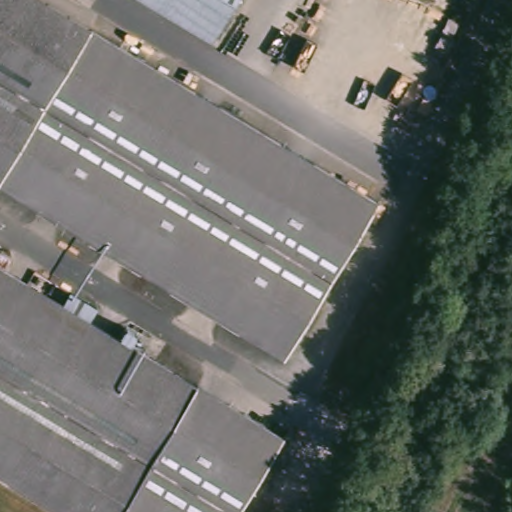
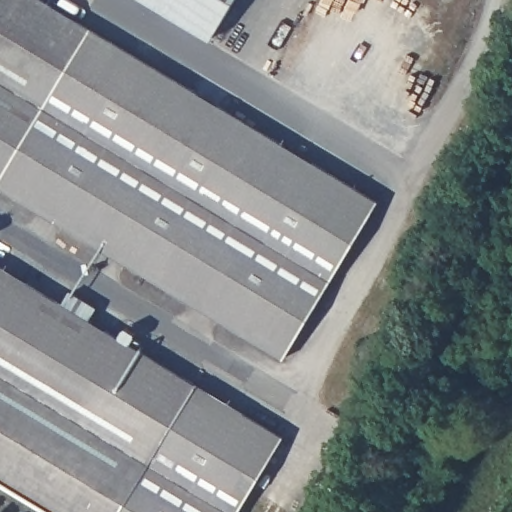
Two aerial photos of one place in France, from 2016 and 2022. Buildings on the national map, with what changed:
unchanged [(376,200),(280,359),(0,191),(0,0),(41,0),(376,200)]
unchanged [(210,40),(143,0),(234,0),(210,40)]
unchanged [(59,302),(66,291),(95,308),(88,320),(281,436),(235,512),(56,512),(0,478),(0,267),(59,302)]

